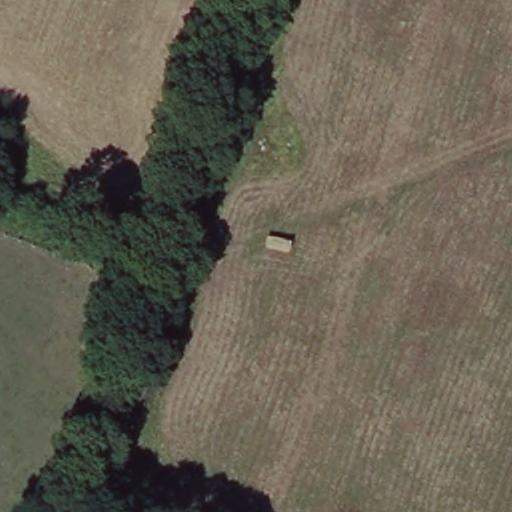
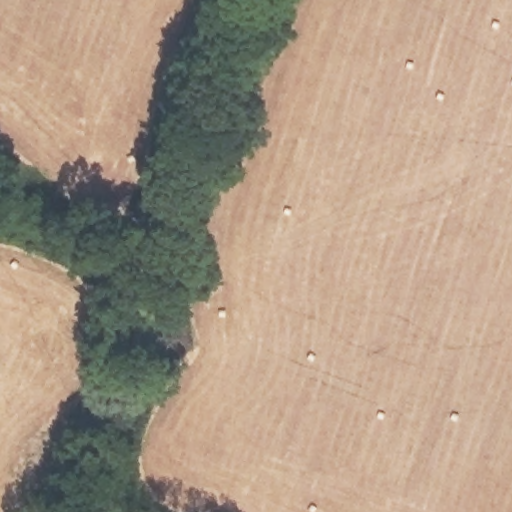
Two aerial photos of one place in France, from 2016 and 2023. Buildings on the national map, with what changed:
unchanged [(193,43),(184,68),(170,62),(179,37),(193,43)]

